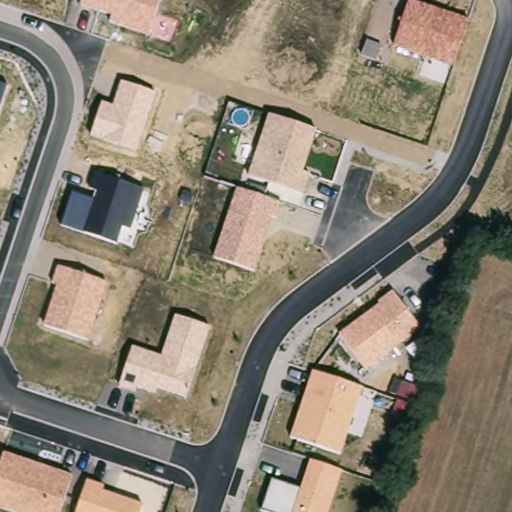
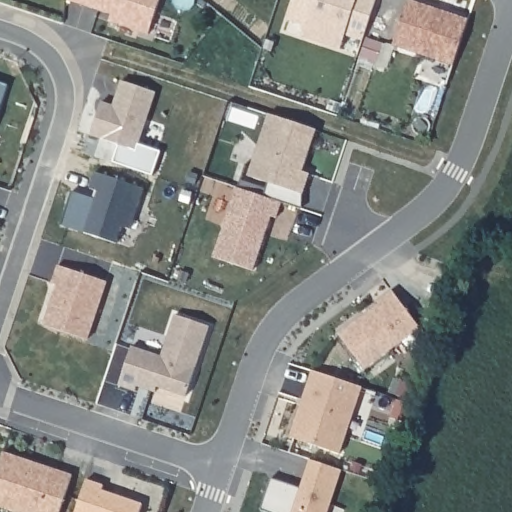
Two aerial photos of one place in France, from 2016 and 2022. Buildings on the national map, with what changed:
unchanged [(108,25),(113,14),(81,5),(82,0),(160,0),(149,36),(108,25)]
new [(323,43),(302,36),(305,26),(287,19),(293,0),(377,0),(364,41),(345,35),(340,49),(323,43)]
unchanged [(408,0),(467,19),(452,64),(394,46),(408,0)]
unchanged [(90,136),(102,101),(114,104),(121,82),(156,93),(136,152),(90,136)]
unchanged [(0,106),(0,84),(8,86),(0,106)]
unchanged [(269,114),(317,130),(303,173),(309,174),(304,194),(249,175),(269,114)]
unchanged [(84,233),(61,225),(73,192),(94,199),(96,190),(90,187),(96,171),(144,188),(131,230),(123,226),(118,244),(84,233)]
unchanged [(237,189),(281,204),(277,220),(272,219),(253,270),(214,257),(237,189)]
unchanged [(44,325),(57,285),(53,284),(59,266),(106,282),(88,340),(44,325)]
unchanged [(339,334),(379,306),(376,301),(392,290),(419,328),(365,368),(339,334)]
unchanged [(133,347),(161,356),(175,314),(210,326),(187,397),(158,388),(156,393),(137,386),(135,392),(119,386),(133,347)]
unchanged [(289,437),(313,371),(361,388),(339,454),(289,437)]
unchanged [(0,460),(3,452),(70,475),(59,512),(16,512),(0,507),(0,460)]
unchanged [(272,479),(299,488),(310,459),(342,470),(328,512),(268,512),(262,510),(272,479)]
unchanged [(105,486),(104,490),(143,503),(140,512),(76,512),(87,480),(105,486)]

